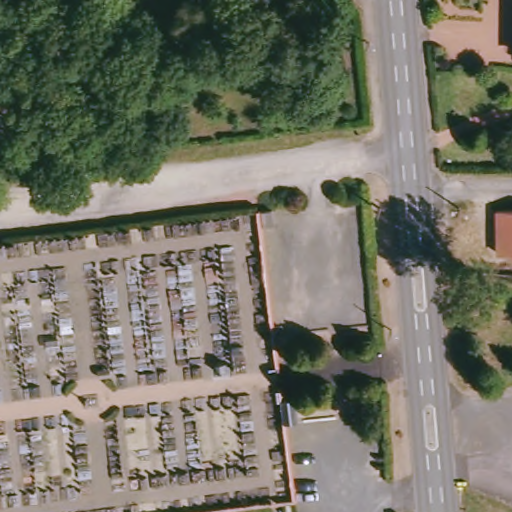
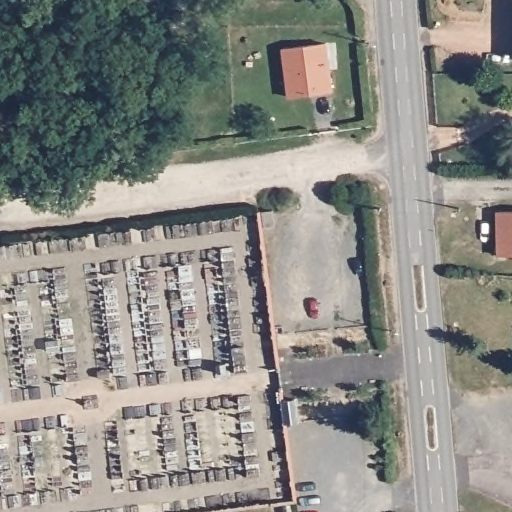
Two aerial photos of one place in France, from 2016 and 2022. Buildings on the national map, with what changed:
new [(287,98),(281,49),(327,43),(333,90),(287,98)]
unchanged [(261,208),(273,207),(275,224),(263,227),(261,208)]
unchanged [(512,215),(512,259),(498,259),(498,215),(512,215)]
unchanged [(285,400),(298,399),(300,423),(288,424),(285,400)]

